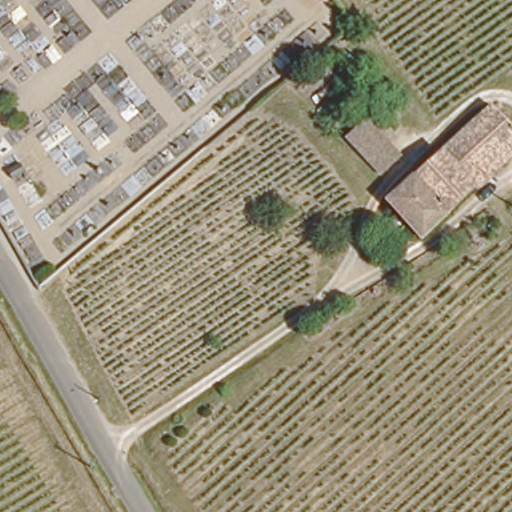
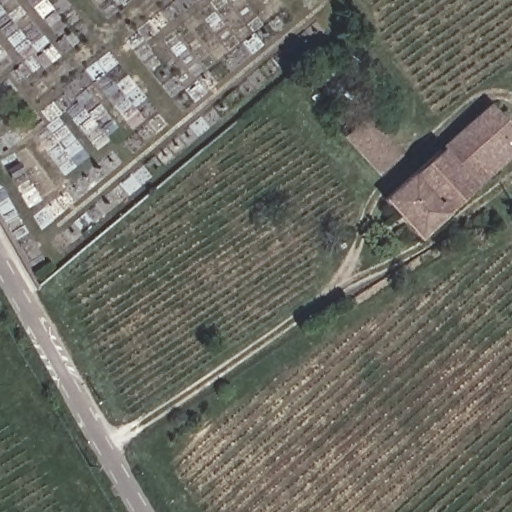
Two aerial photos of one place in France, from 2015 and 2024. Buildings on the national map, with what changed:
unchanged [(418,232),(384,195),(433,149),(489,101),(512,126),(512,149),(418,232)]
unchanged [(363,111),(395,151),(375,168),(341,131),(363,111)]

